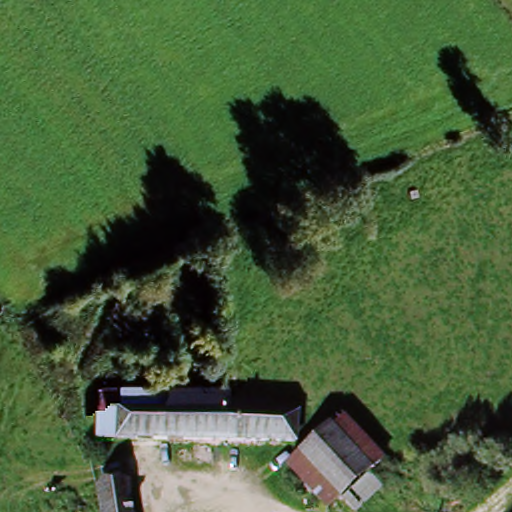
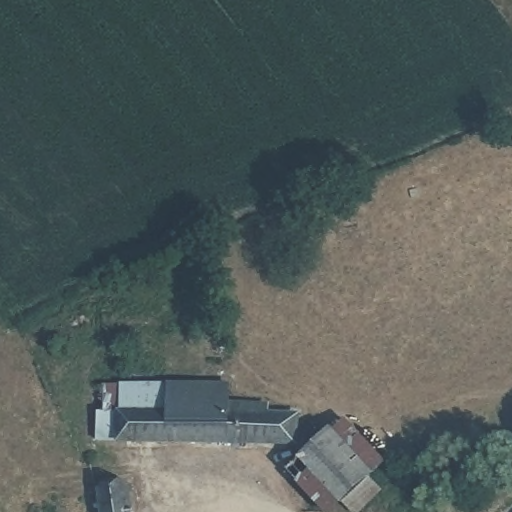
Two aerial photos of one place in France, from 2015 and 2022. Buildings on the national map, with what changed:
unchanged [(227,383),(227,409),(290,411),(288,447),(120,446),(92,451),(94,386),(190,383),(227,383)]
unchanged [(352,416),(387,466),(328,512),(323,512),(288,467),(352,416)]
unchanged [(102,495),(114,493),(118,512),(88,512),(85,498),(102,495)]

